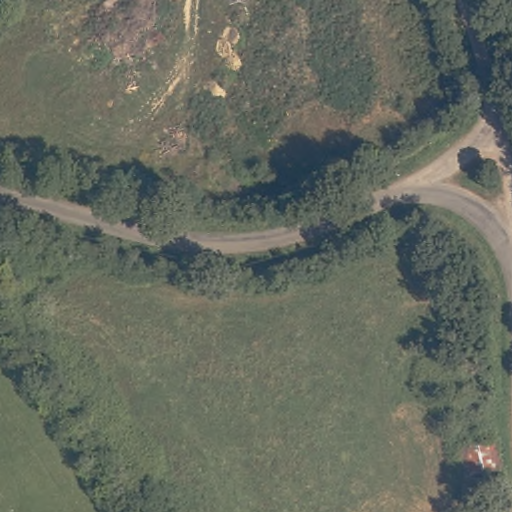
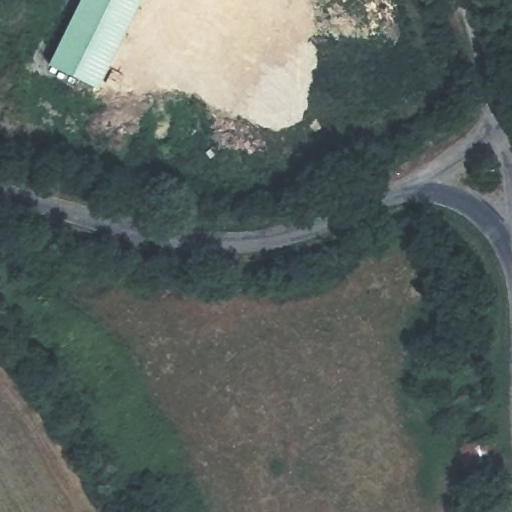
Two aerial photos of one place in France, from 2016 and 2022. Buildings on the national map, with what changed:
new [(98,88),(50,64),(82,0),(142,0),(98,88)]
unchanged [(456,438),(493,433),(507,481),(467,491),(456,438)]

